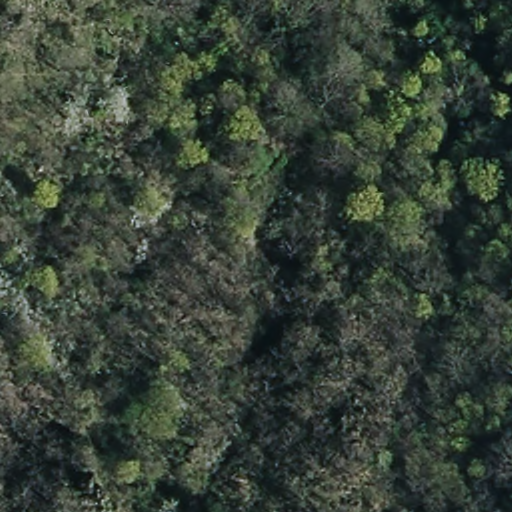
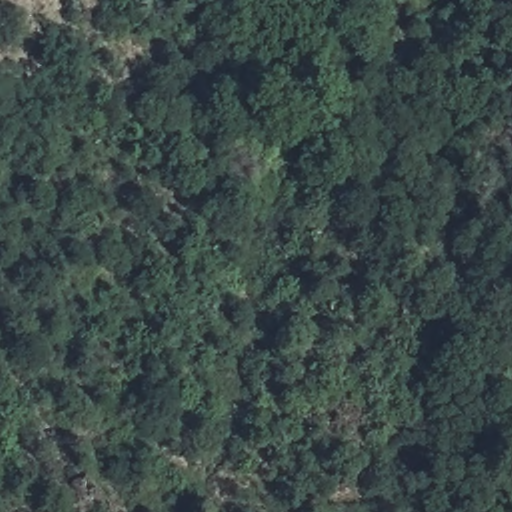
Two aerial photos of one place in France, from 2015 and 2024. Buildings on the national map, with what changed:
unchanged [(454,11),(465,0),(487,0),(464,23),(454,11)]

